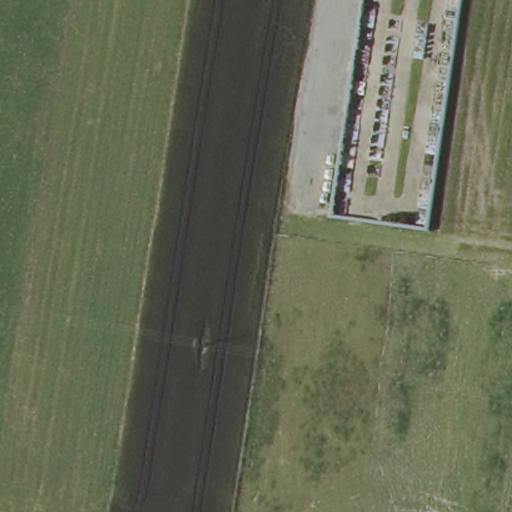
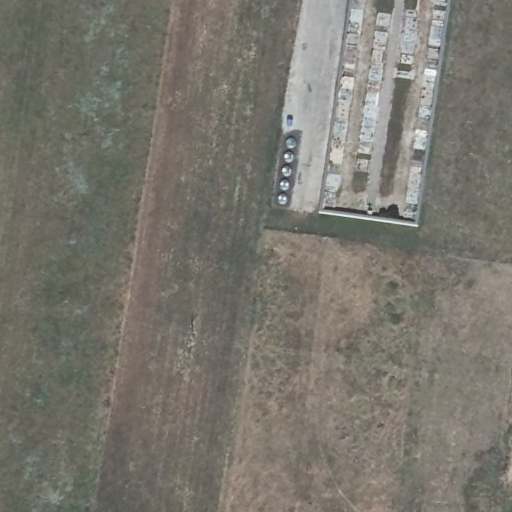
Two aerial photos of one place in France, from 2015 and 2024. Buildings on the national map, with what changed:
[]

